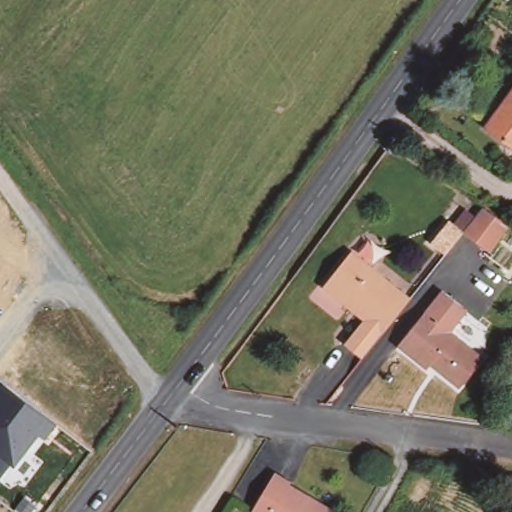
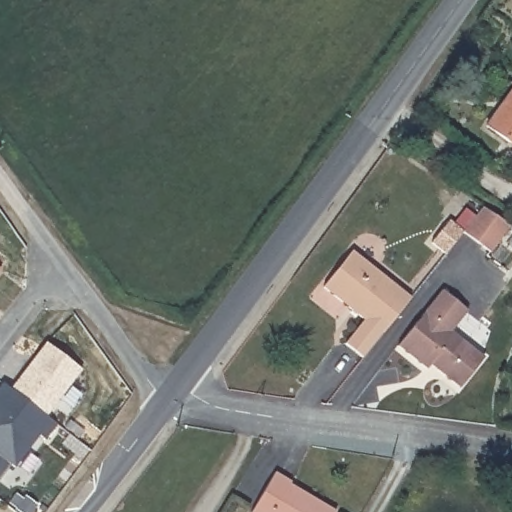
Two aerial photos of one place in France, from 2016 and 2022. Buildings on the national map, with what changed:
unchanged [(512,89),(512,146),(485,126),(512,89)]
unchanged [(463,232),(482,207),(510,225),(490,252),(463,232)]
unchanged [(463,232),(445,254),(431,242),(448,221),(463,232)]
unchanged [(393,318),(362,358),(345,344),(363,320),(323,287),(351,251),(410,297),(393,318)]
unchanged [(1,270),(0,271),(0,269),(1,270)]
unchanged [(479,358),(455,388),(425,365),(422,369),(392,346),(437,290),(462,311),(446,331),(479,358)]
new [(82,371),(46,417),(10,390),(45,342),(82,371)]
unchanged [(57,424),(45,440),(40,437),(15,467),(11,464),(0,480),(0,387),(2,384),(57,424)]
unchanged [(335,512),(251,512),(275,472),(290,482),(290,485),(335,512)]

